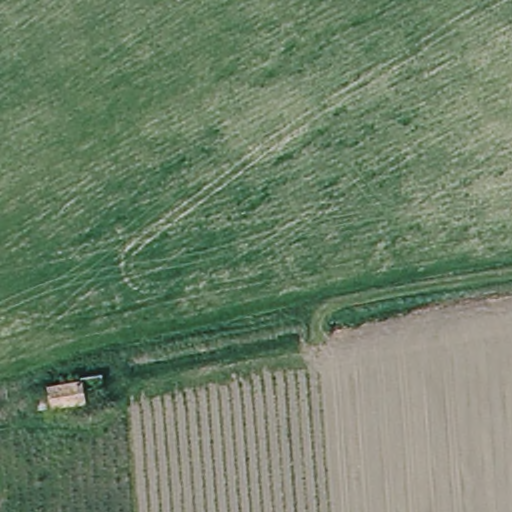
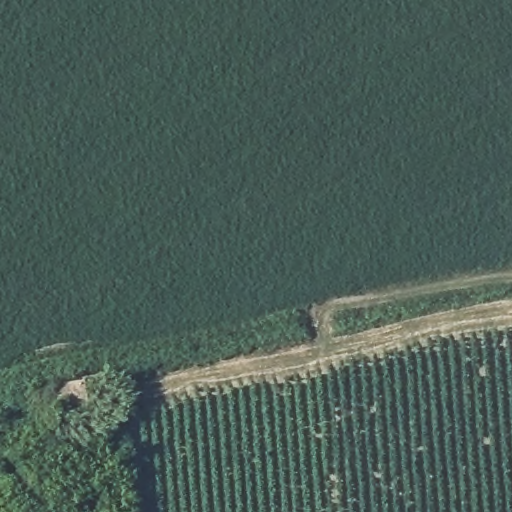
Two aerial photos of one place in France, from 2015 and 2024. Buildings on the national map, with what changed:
unchanged [(35,388),(48,387),(48,385),(81,379),(83,401),(52,405),(35,408),(35,388)]

